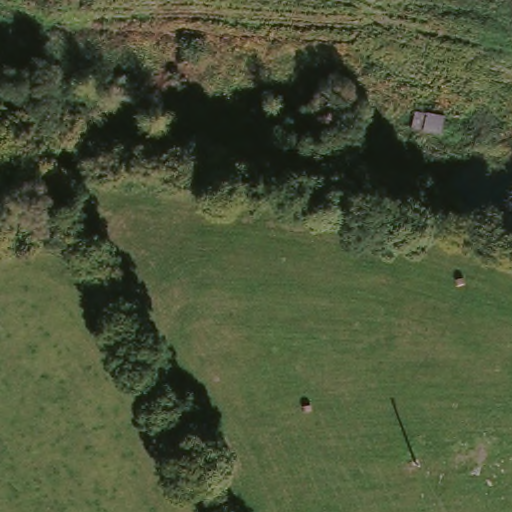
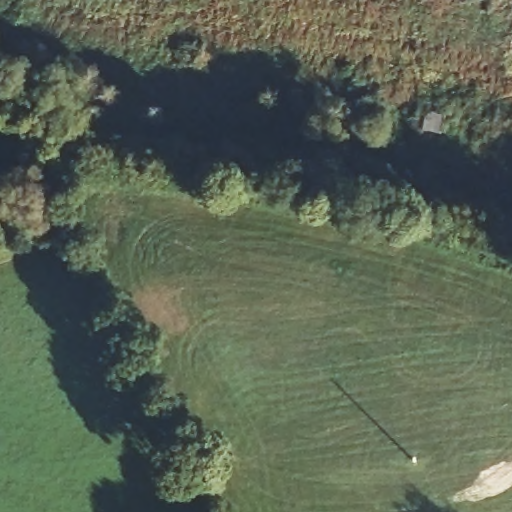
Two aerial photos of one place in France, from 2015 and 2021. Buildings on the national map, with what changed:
unchanged [(431,138),(415,133),(421,122),(435,127),(431,138)]
unchanged [(50,211),(45,216),(61,233),(52,241),(7,192),(22,179),(50,211)]

